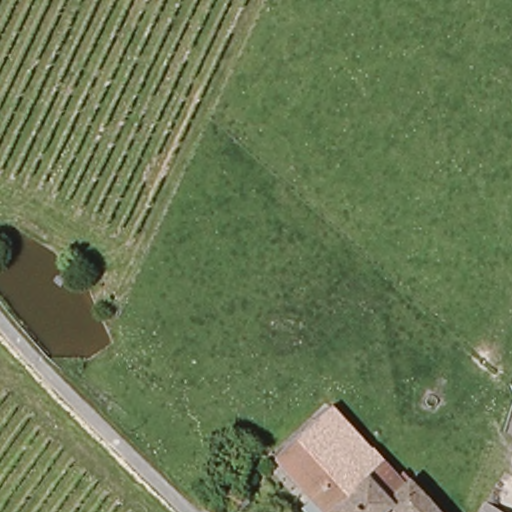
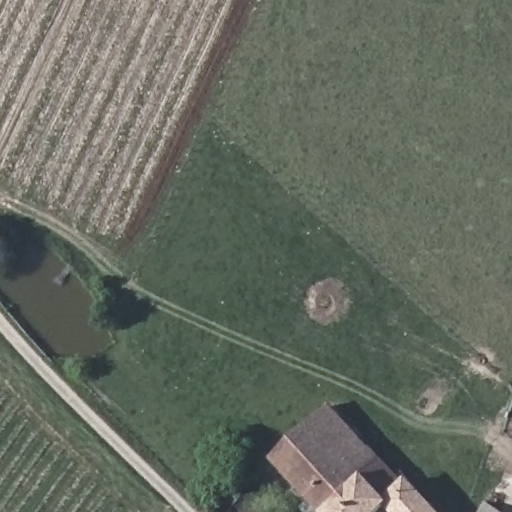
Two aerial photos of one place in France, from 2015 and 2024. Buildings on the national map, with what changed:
unchanged [(278,455),(337,405),(391,469),(401,462),(445,512),(330,512),(278,455)]
unchanged [(492,511),(493,512),(491,512),(492,511)]

